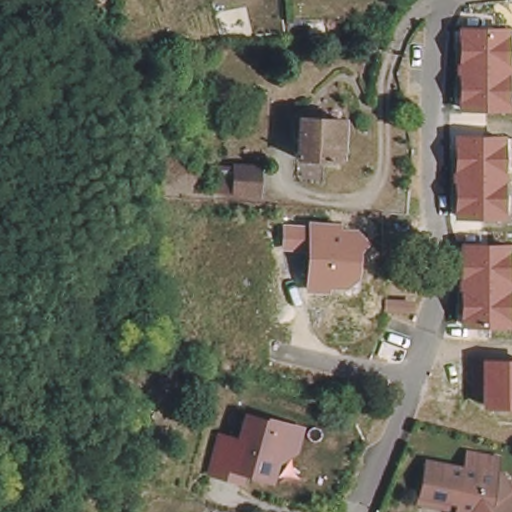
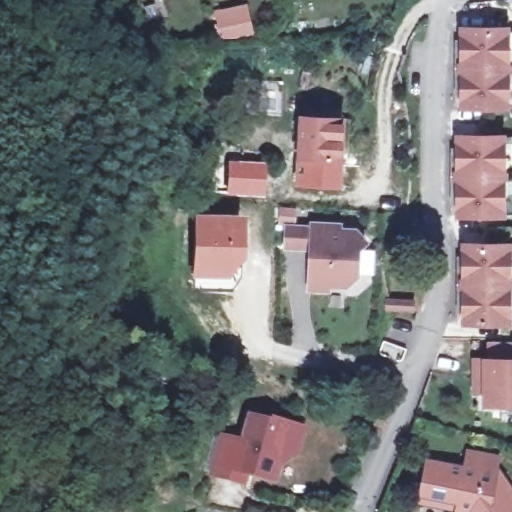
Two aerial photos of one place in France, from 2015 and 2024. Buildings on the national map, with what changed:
new [(247,2),(256,36),(221,44),(213,11),(247,2)]
unchanged [(508,28),(508,110),(459,109),(460,28),(508,28)]
unchanged [(303,112),(346,115),(342,155),(299,151),(303,112)]
unchanged [(504,137),(504,218),(454,217),(454,137),(504,137)]
unchanged [(241,175),(268,176),(266,204),(239,202),(241,175)]
new [(192,215),(241,217),(235,282),(190,280),(192,215)]
unchanged [(310,226),(310,222),(341,223),(342,229),(357,229),(368,241),(368,247),(361,251),(360,278),(347,288),(329,287),(328,292),(305,291),(308,254),(283,252),(283,225),(310,226)]
unchanged [(510,244),(511,326),(460,325),(461,244),(510,244)]
unchanged [(481,407),(481,358),(512,358),(512,407),(481,407)]
unchanged [(298,462),(283,458),(279,483),(245,474),(244,488),(209,481),(217,433),(239,437),(245,414),(306,428),(298,462)]
unchanged [(457,497),(420,490),(428,450),(465,457),(468,441),(497,447),(494,461),(512,486),(512,504),(500,512),(461,512),(465,510),(457,497)]

